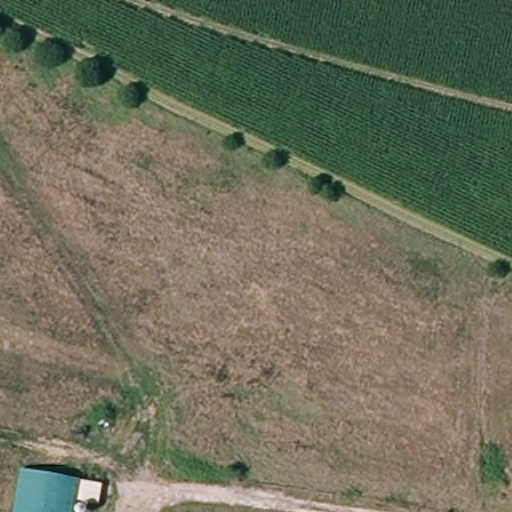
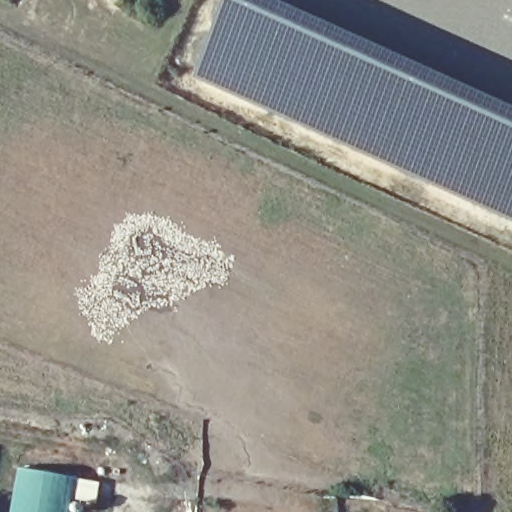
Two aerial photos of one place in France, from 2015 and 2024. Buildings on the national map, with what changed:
new [(229,0),(243,0),(506,116),(512,119),(512,221),(412,175),(195,79),(229,0)]
new [(510,106),(506,116),(243,0),(278,0),(510,106)]
unchanged [(101,481),(97,501),(77,498),(75,512),(14,512),(20,470),(101,481)]

